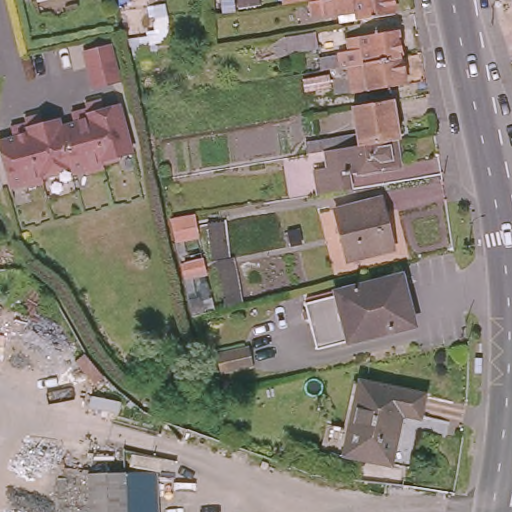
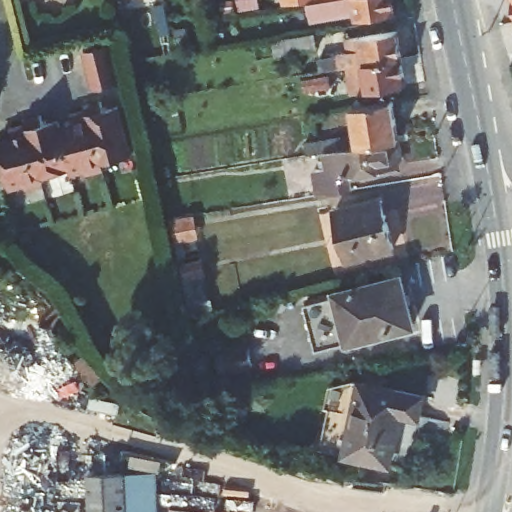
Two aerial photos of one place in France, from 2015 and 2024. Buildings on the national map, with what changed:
unchanged [(288,5),(288,0),(315,0),(310,1),(288,5)]
unchanged [(395,0),(397,13),(361,19),(360,11),(342,15),(340,8),(311,13),(310,1),(315,0),(395,0)]
unchanged [(312,31),(315,48),(283,53),(280,36),(312,31)]
unchanged [(324,70),(322,59),(353,54),(353,51),(351,40),(399,31),(404,56),(409,83),(372,90),(356,92),(351,65),(324,70)]
unchanged [(105,44),(114,78),(90,84),(81,50),(105,44)]
unchanged [(113,154),(114,158),(97,161),(99,166),(82,171),(81,168),(67,172),(65,165),(53,169),(54,172),(37,177),(39,181),(21,186),(20,183),(7,187),(0,161),(0,139),(10,136),(6,126),(22,123),(20,118),(36,114),(40,123),(54,119),(56,126),(70,121),(67,112),(82,108),(81,103),(97,99),(100,108),(115,104),(126,150),(113,154)]
unchanged [(356,105),(395,99),(401,138),(396,138),(362,143),(356,105)]
unchanged [(309,141),(325,138),(327,149),(311,151),(309,141)]
unchanged [(352,173),(354,186),(320,191),(317,167),(331,165),(328,148),(338,146),(362,143),(396,138),(400,165),(352,173)]
unchanged [(385,197),(393,248),(345,255),(336,205),(385,197)]
unchanged [(187,222),(189,230),(172,234),(170,226),(187,222)]
unchanged [(177,257),(197,252),(204,251),(207,265),(201,267),(181,272),(177,257)]
unchanged [(338,291),(338,289),(401,276),(411,324),(316,343),(307,297),(338,291)]
unchanged [(245,356),(215,363),(211,345),(241,338),(245,356)]
unchanged [(425,392),(421,414),(401,410),(392,459),(348,449),(362,379),(425,392)]
unchanged [(217,456),(190,446),(195,433),(222,444),(217,456)]
unchanged [(87,474),(126,473),(158,471),(160,512),(89,512),(87,474)]

